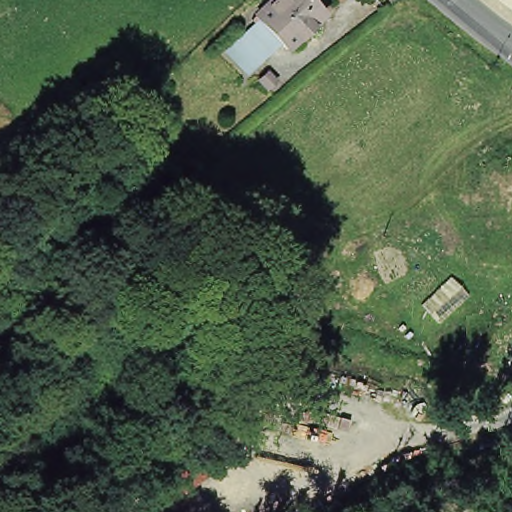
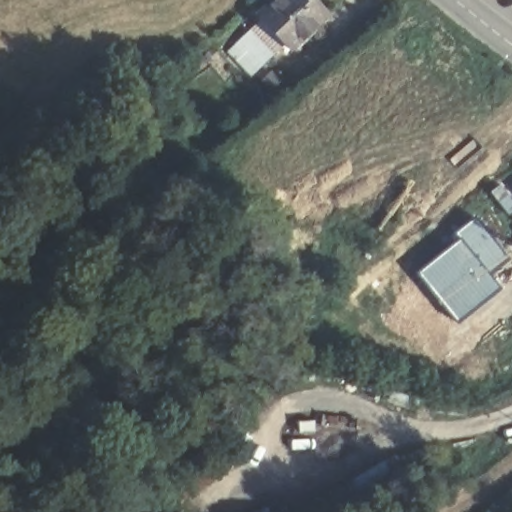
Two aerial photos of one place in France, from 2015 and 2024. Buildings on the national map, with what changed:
unchanged [(281,0),(314,0),(330,17),(293,51),(288,44),(262,16),(281,0)]
unchanged [(262,29),(257,22),(262,16),(288,44),(256,76),(235,54),(262,29)]
new [(474,217),(507,257),(489,273),(458,238),(455,233),(474,217)]
new [(458,238),(489,273),(501,287),(457,322),(417,272),(458,238)]

